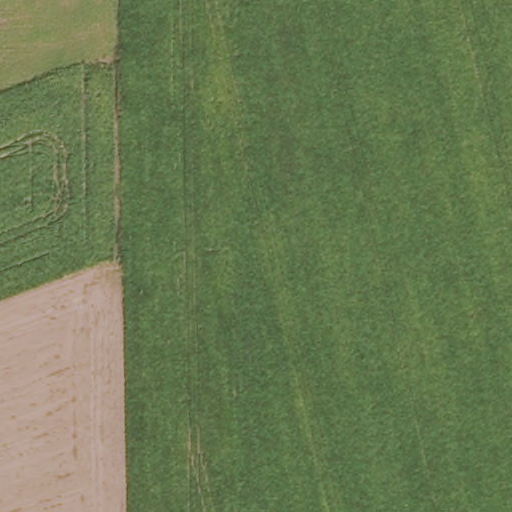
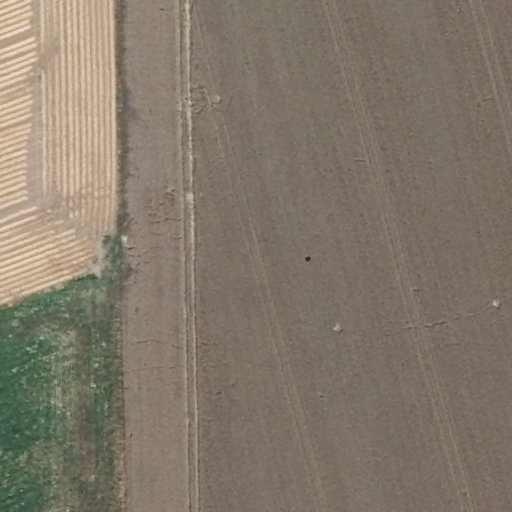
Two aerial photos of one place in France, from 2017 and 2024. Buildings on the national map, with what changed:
[]

